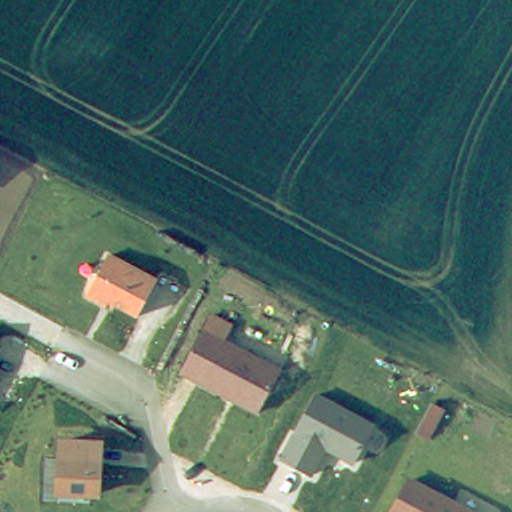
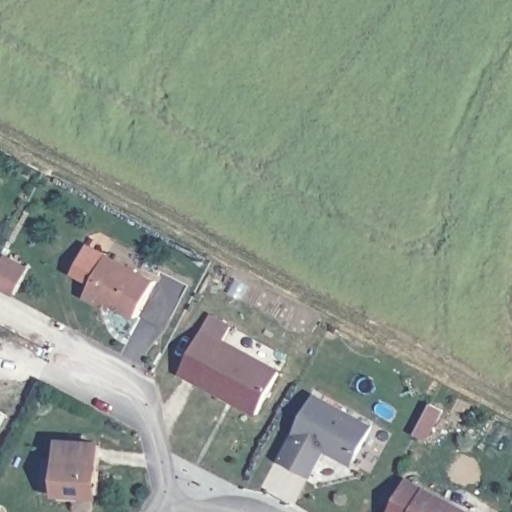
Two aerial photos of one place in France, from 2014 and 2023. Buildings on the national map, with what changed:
unchanged [(157,279),(140,318),(90,295),(109,253),(157,279)]
new [(24,268),(10,295),(5,292),(0,290),(0,259),(1,256),(24,268)]
unchanged [(232,326),(224,340),(279,368),(255,415),(176,373),(209,310),(232,326)]
unchanged [(0,350),(0,347),(1,347),(0,350)]
unchanged [(376,426),(355,467),(324,452),(311,475),(279,459),(313,394),(376,426)]
unchanged [(101,440),(100,497),(55,495),(56,438),(101,440)]
unchanged [(392,512),(409,478),(472,512),(392,512)]

